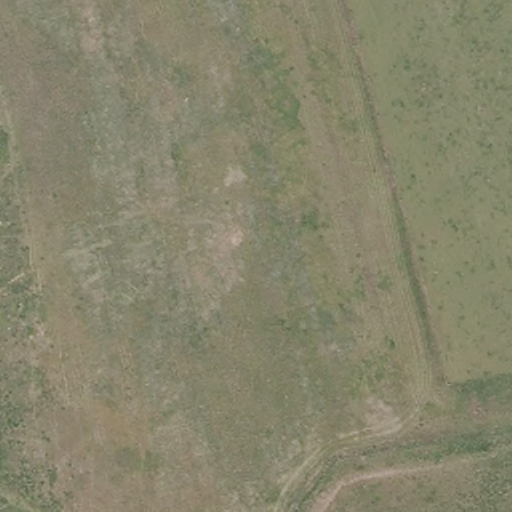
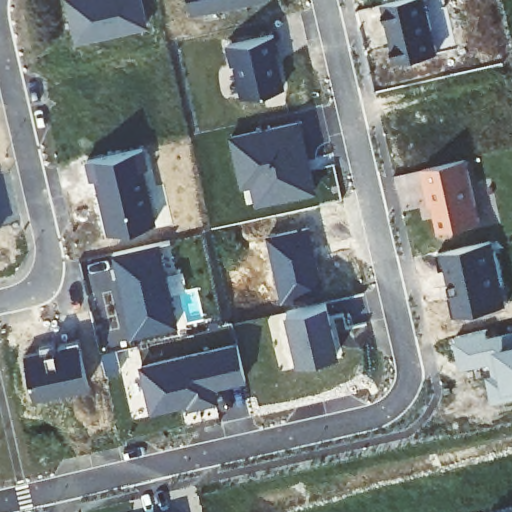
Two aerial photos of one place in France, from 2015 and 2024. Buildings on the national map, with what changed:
new [(65,0),(142,0),(148,26),(75,43),(65,0)]
new [(192,14),(188,0),(254,0),(192,14)]
new [(384,5),(404,0),(417,0),(430,55),(397,62),(384,5)]
new [(228,45),(275,34),(287,85),(240,96),(228,45)]
new [(228,135),(300,119),(317,191),(255,205),(250,186),(240,187),(228,135)]
new [(94,178),(90,179),(85,160),(142,149),(147,166),(143,167),(156,223),(107,234),(94,178)]
new [(432,205),(429,205),(421,170),(467,160),(482,222),(439,231),(432,205)]
new [(266,237),(309,227),(325,291),(281,301),(266,237)]
new [(450,298),(454,292),(452,284),(449,285),(446,270),(441,270),(438,254),(492,241),(508,305),(455,316),(450,298)]
new [(111,255),(159,245),(177,325),(131,336),(111,255)]
new [(285,310),(328,301),(339,351),(297,361),(285,310)]
new [(454,338),(487,330),(489,337),(512,332),(512,399),(495,402),(488,376),(495,375),(492,364),(462,370),(454,338)]
new [(34,398),(24,355),(80,342),(89,386),(34,398)]
new [(139,365),(236,342),(245,380),(217,387),(220,401),(150,413),(139,365)]

